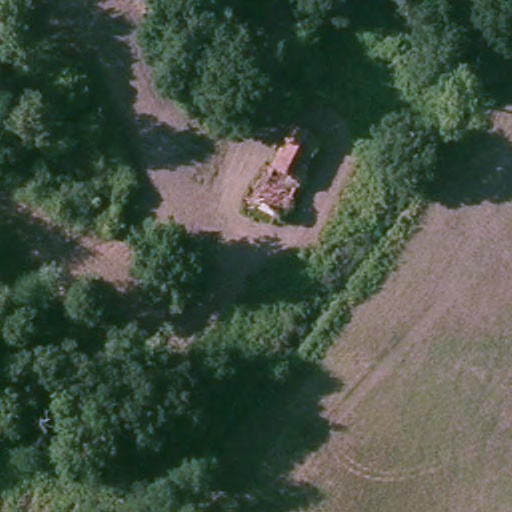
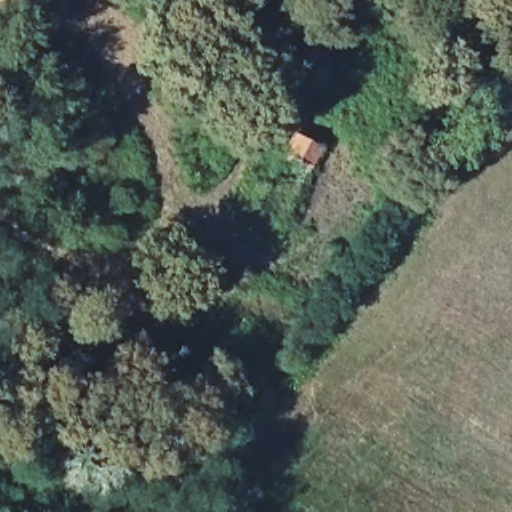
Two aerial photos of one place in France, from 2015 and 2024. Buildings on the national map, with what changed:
unchanged [(318,149),(277,228),(239,211),(284,132),(318,149)]
unchanged [(111,256),(90,245),(101,225),(123,237),(111,256)]

